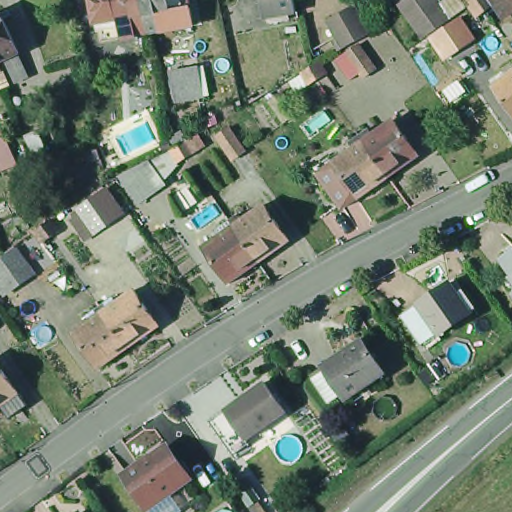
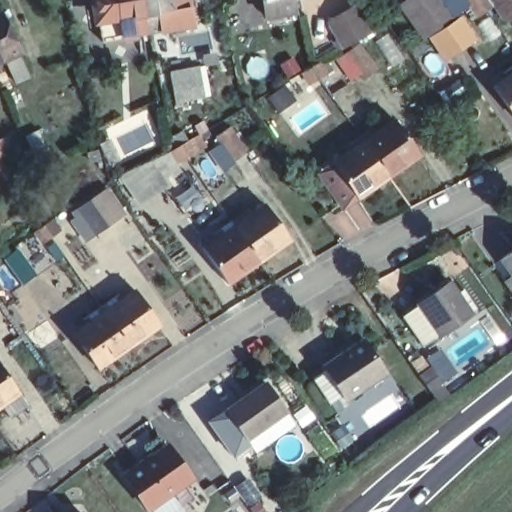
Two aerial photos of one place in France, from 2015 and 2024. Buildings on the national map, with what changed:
unchanged [(101,0),(123,0),(126,20),(140,18),(143,35),(108,41),(101,0)]
unchanged [(143,35),(140,18),(126,20),(123,0),(149,0),(155,33),(143,35)]
unchanged [(167,31),(155,33),(149,0),(176,0),(178,11),(176,11),(178,25),(176,29),(167,31)]
unchanged [(263,0),(293,0),(294,6),(266,11),(263,0)]
unchanged [(426,36),(401,5),(407,0),(442,0),(454,16),(432,31),(426,36)]
unchanged [(474,13),(467,3),(465,0),(490,0),(491,1),(483,7),(474,13)]
unchanged [(335,50),(331,42),(336,39),(326,21),(352,6),(367,32),(335,50)]
unchanged [(13,82),(2,60),(0,60),(0,18),(16,53),(14,54),(25,76),(13,82)]
unchanged [(355,43),(371,69),(359,76),(356,71),(346,78),(333,58),(355,43)]
unchanged [(324,71),(316,76),(308,81),(299,71),(309,65),(318,60),(324,71)]
unchanged [(173,101),(168,71),(196,65),(203,95),(173,101)]
unchanged [(512,78),(512,111),(496,89),(512,78)]
unchanged [(282,118),(266,97),(280,88),(295,109),(282,118)]
unchanged [(371,126),(375,132),(398,116),(423,151),(392,173),(378,154),(363,133),(371,126)]
unchanged [(231,156),(214,132),(226,124),(244,148),(231,156)]
unchanged [(31,157),(21,134),(35,128),(45,151),(31,157)]
unchanged [(179,161),(173,149),(175,148),(179,145),(173,136),(184,129),(191,139),(202,131),(209,143),(198,151),(189,155),(179,161)]
unchanged [(316,165),(331,155),(334,160),(356,145),(353,140),(363,133),(378,154),(392,173),(361,195),(346,206),(316,165)]
unchanged [(1,169),(0,165),(0,141),(3,140),(14,163),(1,169)]
unchanged [(148,159),(164,181),(138,199),(119,173),(148,159)]
unchanged [(62,220),(73,212),(93,198),(108,187),(127,213),(110,224),(91,237),(80,245),(62,220)]
unchanged [(241,213),(246,218),(268,203),(293,237),(262,260),(248,240),(233,219),(241,213)]
unchanged [(39,233),(38,230),(46,224),(54,219),(62,230),(54,236),(45,242),(39,233)]
unchanged [(248,240),(262,260),(231,281),(204,247),(226,231),(223,226),(233,219),(248,240)]
unchanged [(0,281),(0,261),(5,257),(19,248),(37,273),(23,282),(8,293),(0,281)]
unchanged [(512,248),(512,270),(502,256),(512,248)]
unchanged [(512,273),(512,275),(511,274),(512,273)]
unchanged [(407,309),(424,297),(455,275),(477,306),(446,328),(429,340),(407,309)]
unchanged [(113,298),(116,304),(138,289),(163,323),(132,345),(118,326),(103,304),(113,298)]
unchanged [(118,326),(132,345),(100,367),(75,332),(97,317),(93,311),(103,304),(118,326)]
unchanged [(311,378),(325,368),(323,365),(351,346),(364,338),(367,342),(386,371),(344,397),(339,388),(324,398),(311,378)]
unchanged [(248,438),(223,404),(239,393),(279,364),(301,394),(261,422),(264,426),(248,438)]
unchanged [(0,410),(0,374),(13,392),(21,404),(4,416),(0,410)]
unchanged [(167,512),(149,512),(144,506),(143,507),(119,475),(163,444),(186,476),(166,491),(176,506),(167,512)]
unchanged [(85,505),(90,512),(75,512),(85,505)]

